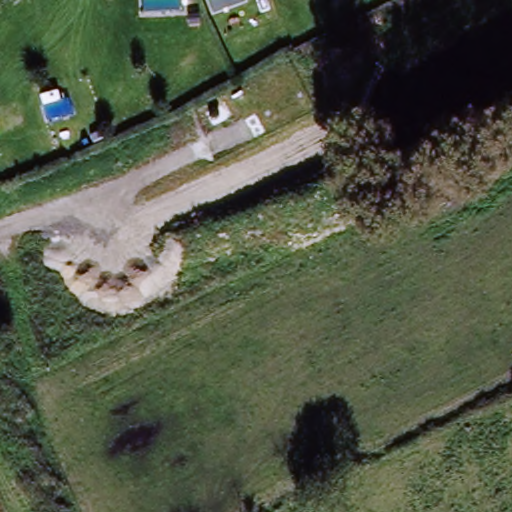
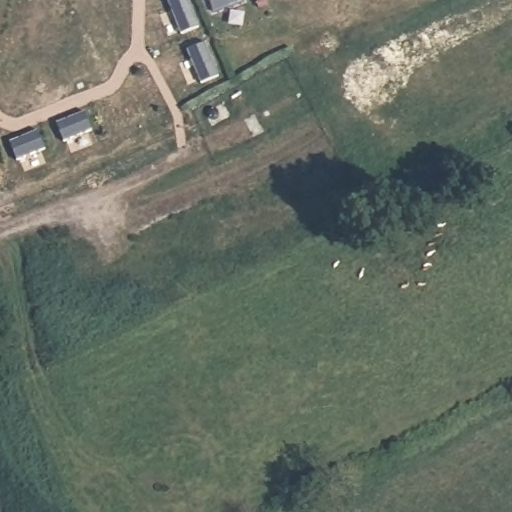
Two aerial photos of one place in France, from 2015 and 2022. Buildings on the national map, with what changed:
unchanged [(449,176),(462,203),(437,213),(423,189),(449,176)]

